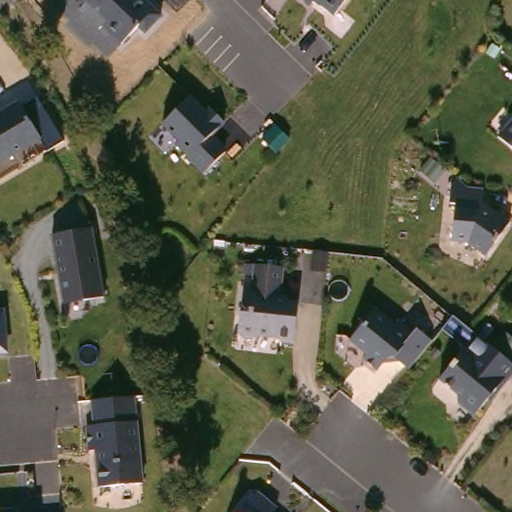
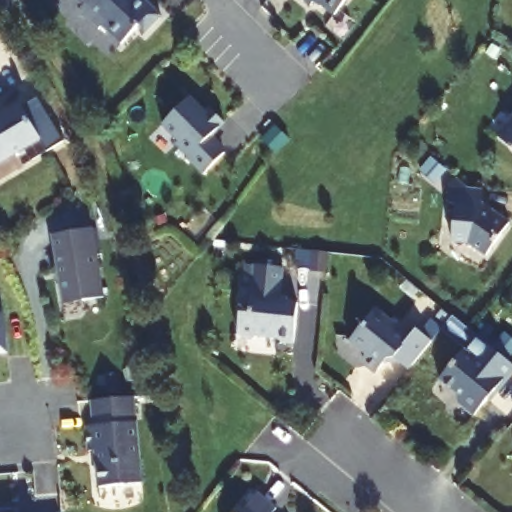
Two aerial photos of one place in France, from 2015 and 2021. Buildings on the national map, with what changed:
unchanged [(149,0),(163,15),(144,35),(137,28),(120,46),(74,0),(149,0)]
unchanged [(315,0),(340,0),(330,12),(315,0)]
unchanged [(187,94),(202,111),(207,106),(221,120),(207,134),(222,150),(201,171),(185,155),(186,154),(174,140),(176,138),(159,121),(187,94)]
unchanged [(24,104),(40,96),(64,140),(46,149),(39,136),(0,158),(0,111),(21,100),(24,104)]
unchanged [(499,133),(512,116),(512,143),(499,133)]
unchanged [(467,234),(451,233),(450,195),(456,196),(452,177),(458,169),(470,179),(486,181),(483,199),(493,208),(495,206),(510,219),(485,249),(467,234)]
unchanged [(99,229),(101,300),(80,301),(80,296),(60,297),(58,230),(99,229)]
unchanged [(322,253),(321,270),(307,269),(308,251),(322,253)]
unchanged [(292,297),(302,298),(298,338),(286,337),(282,332),(263,330),(258,334),(247,333),(242,328),(245,306),(254,307),(257,278),(259,259),(287,263),(284,291),(292,292),(292,297)]
unchanged [(407,369),(392,358),(385,358),(375,369),(361,358),(365,353),(348,339),(373,309),(394,325),(397,322),(410,334),(415,329),(430,342),(407,369)]
unchanged [(7,351),(0,351),(0,311),(4,310),(7,351)]
unchanged [(505,352),(512,358),(512,364),(503,374),(507,377),(477,412),(461,398),(460,389),(443,374),(481,331),(505,352)]
unchanged [(95,397),(136,393),(145,479),(102,484),(98,447),(91,448),(88,423),(96,422),(93,397),(95,397)]
unchanged [(0,485),(2,484),(3,497),(22,495),(22,502),(47,499),(48,512),(0,512),(0,485)]
unchanged [(279,507),(274,512),(242,512),(260,491),(279,507)]

